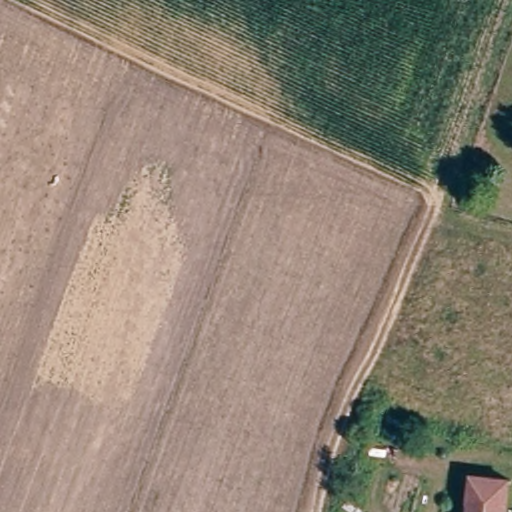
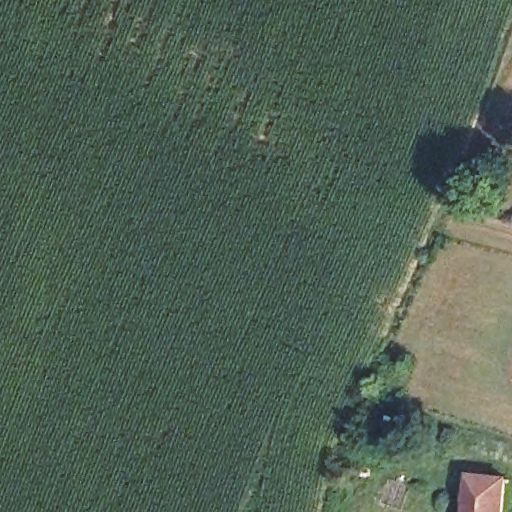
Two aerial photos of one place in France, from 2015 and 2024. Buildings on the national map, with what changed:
unchanged [(466,512),(469,475),(507,479),(504,512),(466,512)]

